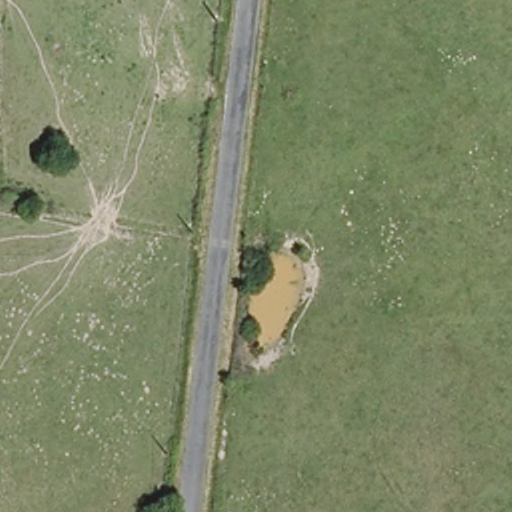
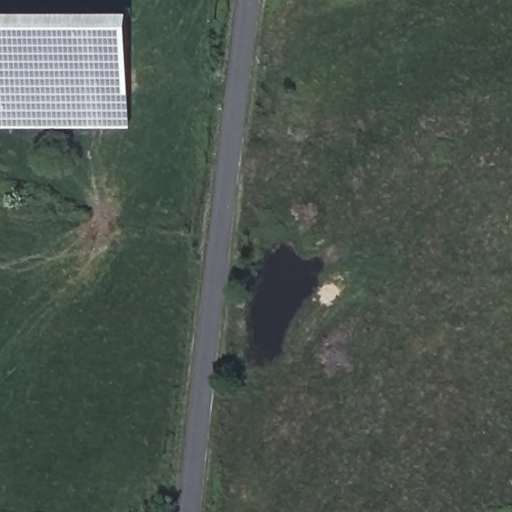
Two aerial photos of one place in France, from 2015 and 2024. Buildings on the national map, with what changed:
new [(0,128),(0,13),(131,13),(132,128),(0,128)]

